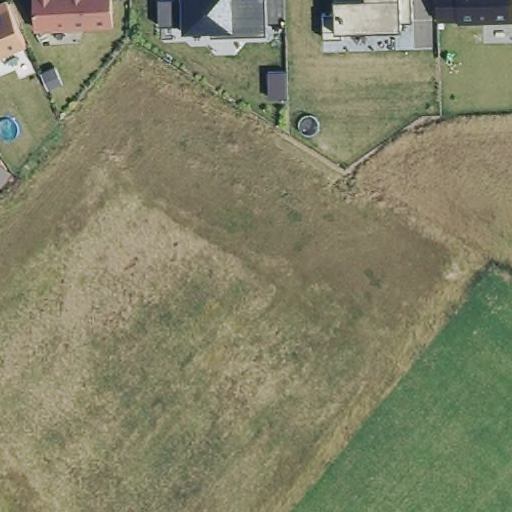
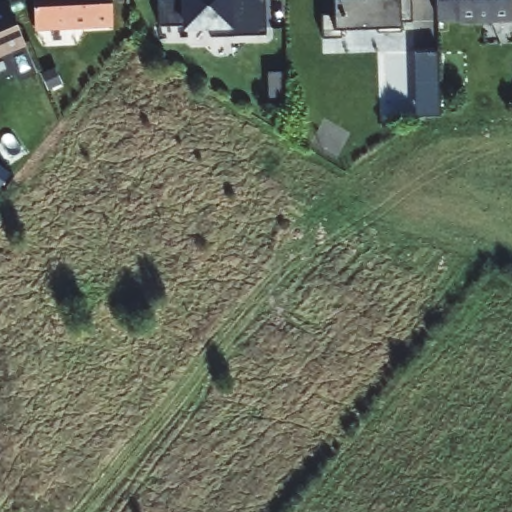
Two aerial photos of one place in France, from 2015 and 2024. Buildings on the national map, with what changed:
unchanged [(3,0),(22,42),(0,52),(0,0),(3,0)]
unchanged [(30,0),(108,0),(107,25),(30,25),(30,0)]
unchanged [(208,36),(211,27),(183,27),(154,25),(155,0),(263,0),(263,36),(208,36)]
unchanged [(398,18),(396,26),(364,28),(366,24),(349,24),(348,33),(320,32),(319,14),(332,13),(333,0),(407,0),(408,16),(398,18)]
unchanged [(436,20),(434,0),(510,0),(510,22),(436,20)]
new [(414,51),(438,50),(440,114),(417,115),(414,51)]

